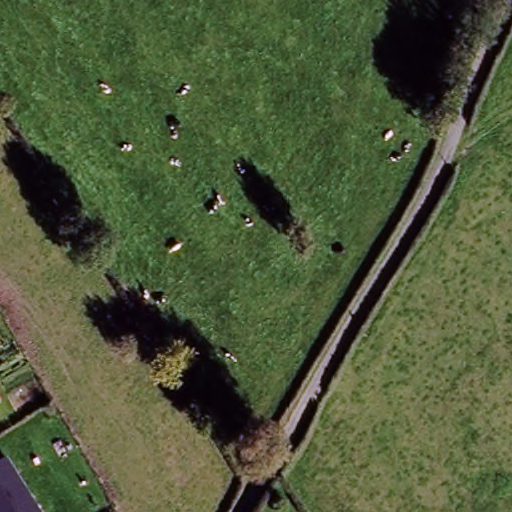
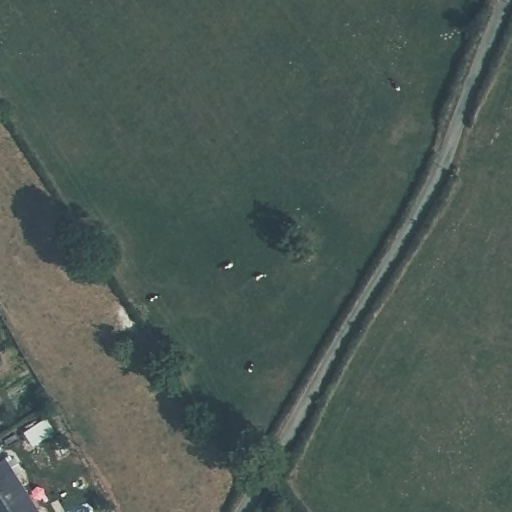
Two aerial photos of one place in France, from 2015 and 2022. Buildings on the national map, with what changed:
unchanged [(0,405),(0,399),(2,403),(0,405)]
unchanged [(5,461),(38,512),(0,512),(0,464),(5,461)]

